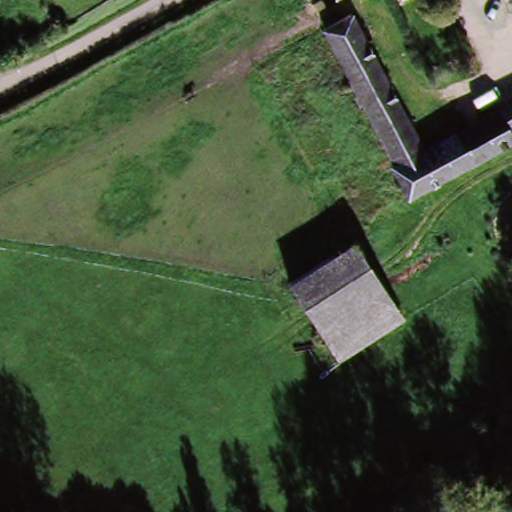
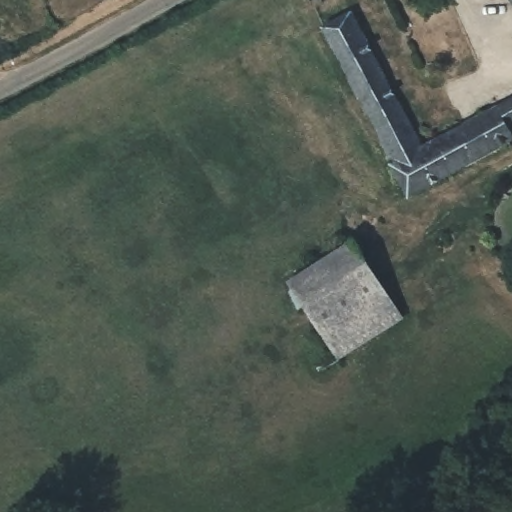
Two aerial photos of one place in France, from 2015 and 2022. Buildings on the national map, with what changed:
unchanged [(396,162),(321,27),(346,13),(423,147),(458,127),(475,157),(409,195),(392,165),(396,162)]
unchanged [(494,105),(512,94),(512,120),(506,124),(494,105)]
unchanged [(494,105),(506,124),(512,134),(512,135),(475,157),(458,127),(494,105)]
unchanged [(347,246),(395,320),(333,361),(285,287),(332,255),(347,246)]

